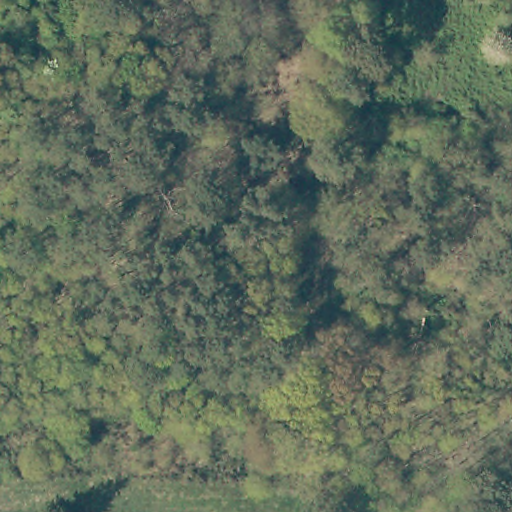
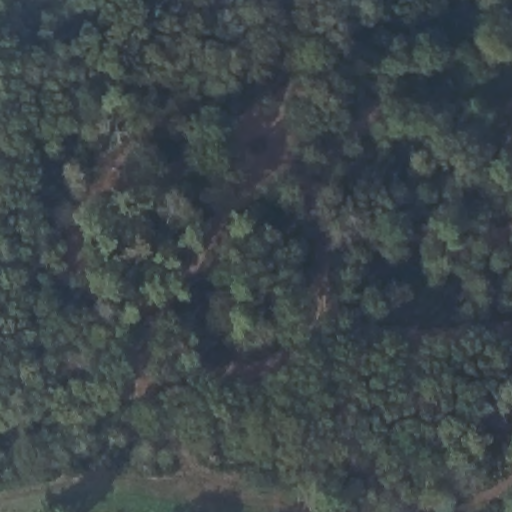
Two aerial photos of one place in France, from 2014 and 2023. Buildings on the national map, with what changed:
[]

